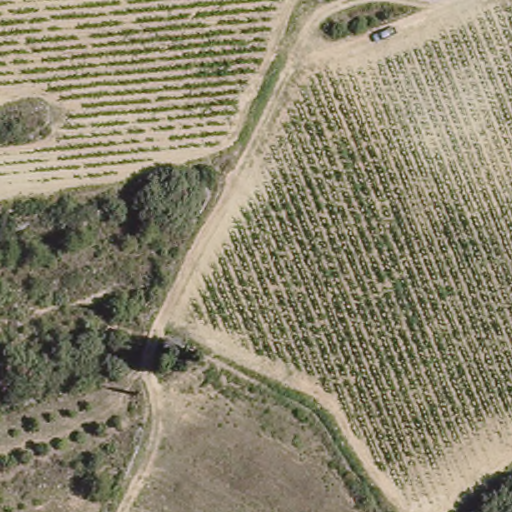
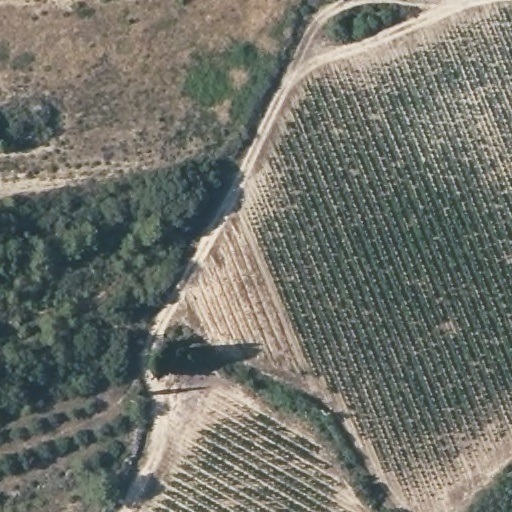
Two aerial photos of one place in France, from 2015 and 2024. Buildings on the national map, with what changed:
unchanged [(161,208),(173,186),(194,199),(184,223),(161,208)]

